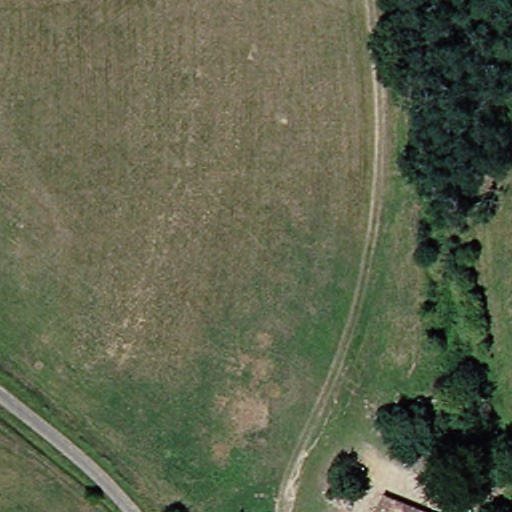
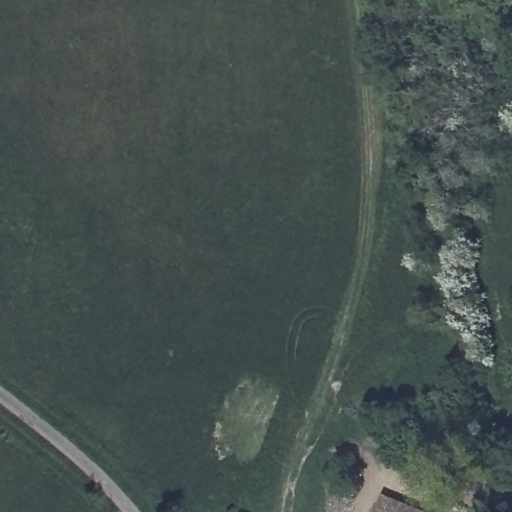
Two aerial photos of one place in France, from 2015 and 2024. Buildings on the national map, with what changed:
unchanged [(389,496),(403,501),(431,512),(383,512),(389,496)]

